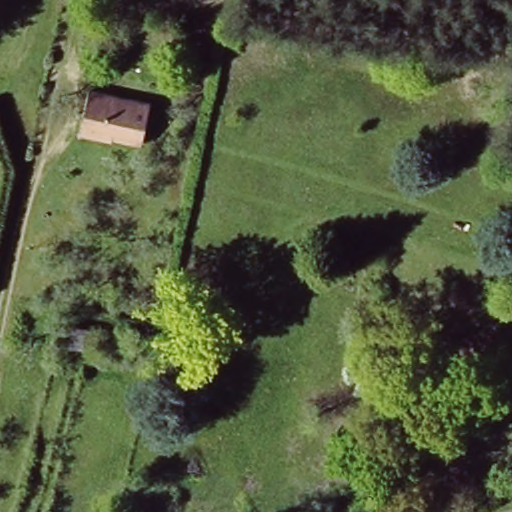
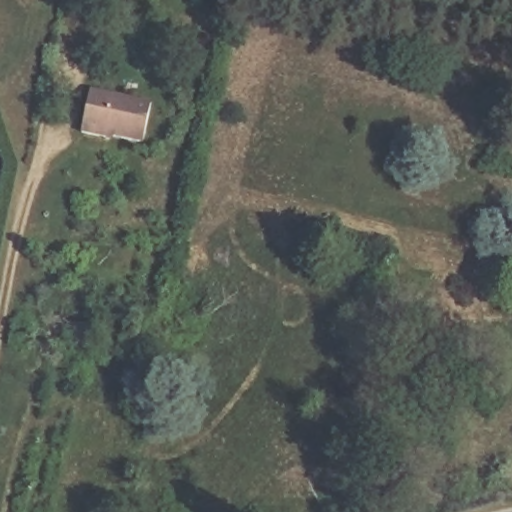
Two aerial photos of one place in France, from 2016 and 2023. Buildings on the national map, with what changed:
unchanged [(106,134),(106,137),(82,132),(91,94),(149,107),(142,142),(106,134)]
unchanged [(64,326),(89,330),(85,350),(61,345),(64,326)]

